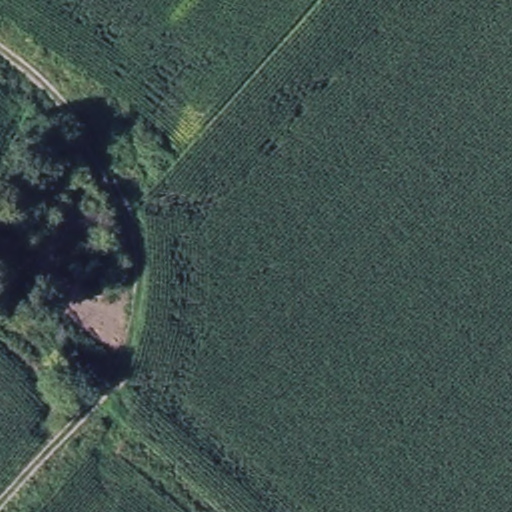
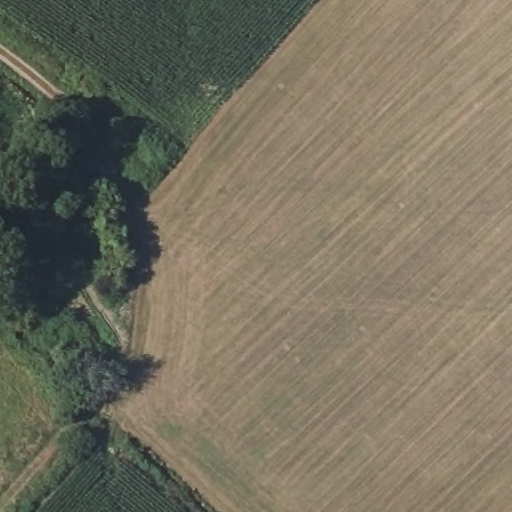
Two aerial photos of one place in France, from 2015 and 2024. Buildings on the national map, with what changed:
[]

